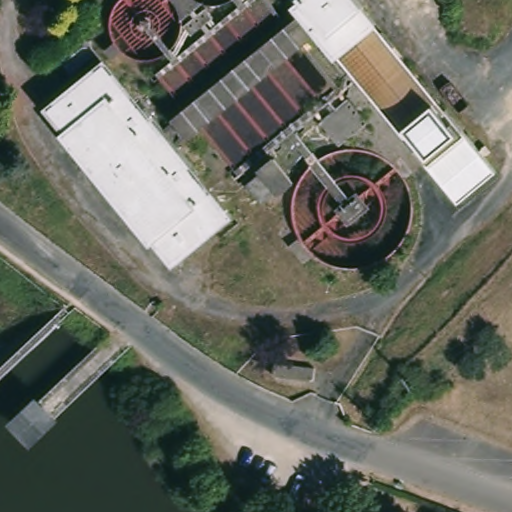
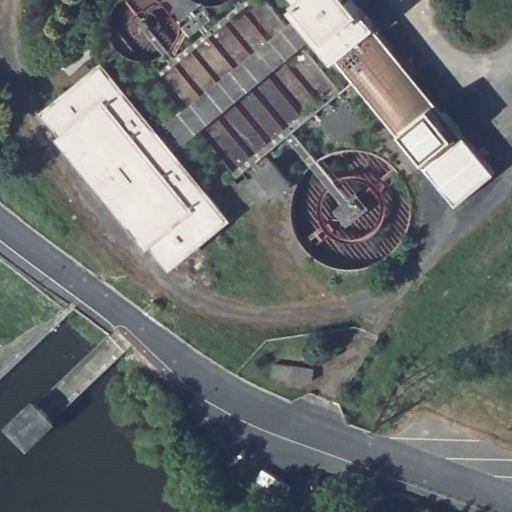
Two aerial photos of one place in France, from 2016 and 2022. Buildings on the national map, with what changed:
unchanged [(202,109),(293,27),(293,24),(294,25),(312,11),(302,0),(371,0),(374,3),(370,6),(472,130),(468,134),(435,160),(422,145),(327,31),(311,45),(304,46),(210,123),(209,126),(187,144),(175,129),(198,110),(202,109)]
unchanged [(237,217),(183,262),(167,242),(161,247),(70,136),(75,133),(57,113),(112,66),(237,217)]
unchanged [(370,111),(342,134),(325,113),(352,89),(370,111)]
unchanged [(435,160),(468,134),(498,172),(460,203),(435,160)]
unchanged [(296,182),(284,192),(281,188),(266,201),(251,184),(263,174),(261,170),(276,158),(296,182)]
unchanged [(30,443),(13,422),(37,399),(55,418),(30,443)]

